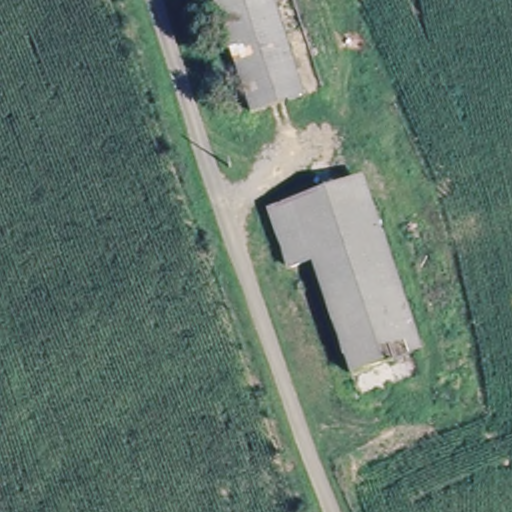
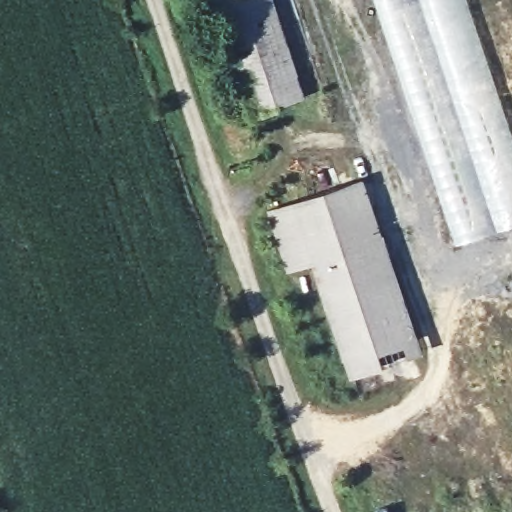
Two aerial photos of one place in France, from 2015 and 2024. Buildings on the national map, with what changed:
unchanged [(271,0),(303,96),(252,113),(215,0),(271,0)]
new [(453,242),(408,113),(372,0),(467,0),(512,134),(512,222),(453,242)]
unchanged [(275,204),(362,176),(419,348),(357,368),(319,255),(295,263),(275,204)]

